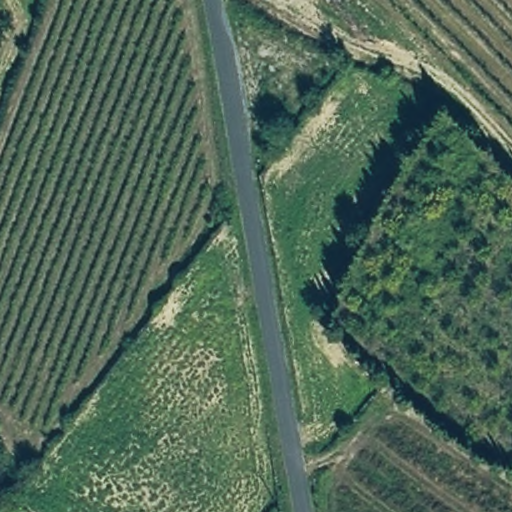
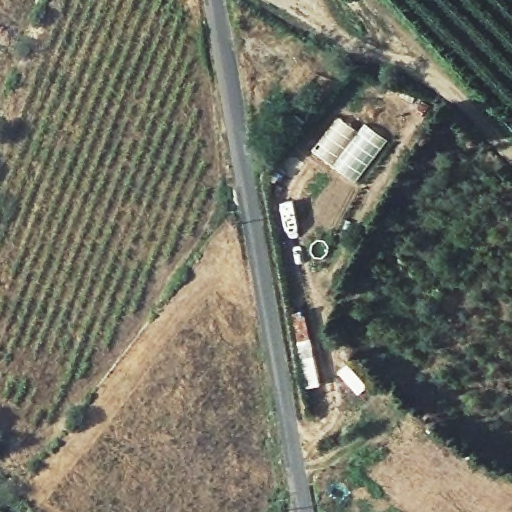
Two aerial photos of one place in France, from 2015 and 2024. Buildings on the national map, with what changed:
new [(324,149),(319,155),(313,149),(340,119),(358,132),(365,124),(387,141),(356,182),(332,165),(336,159),(324,149)]

